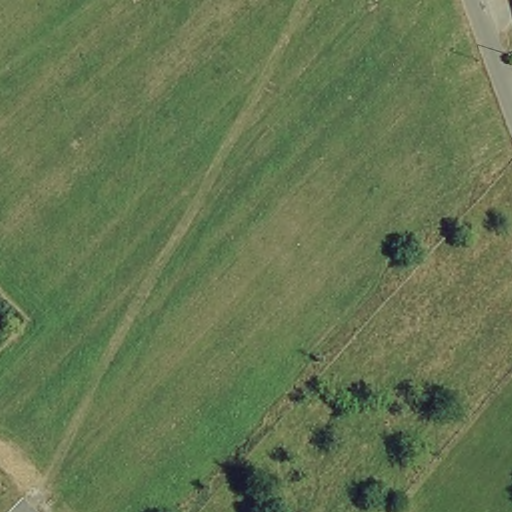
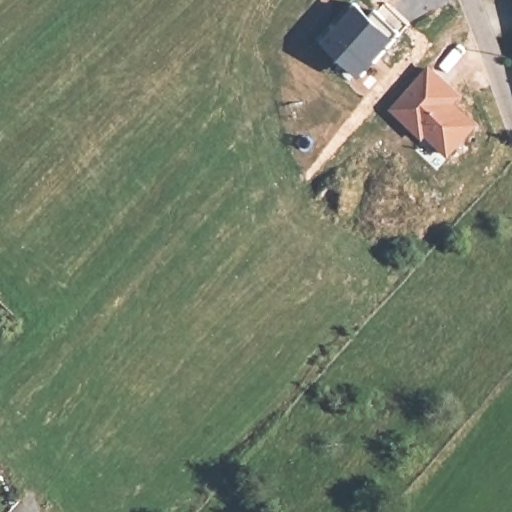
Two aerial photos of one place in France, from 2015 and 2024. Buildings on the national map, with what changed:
new [(341,30),(335,24),(355,5),(369,17),(384,2),(411,24),(379,56),(394,73),(368,104),(336,74),(347,60),(326,44),(341,30)]
new [(428,69),(457,95),(449,104),(474,121),(447,153),(426,136),(422,139),(389,108),(428,69)]

